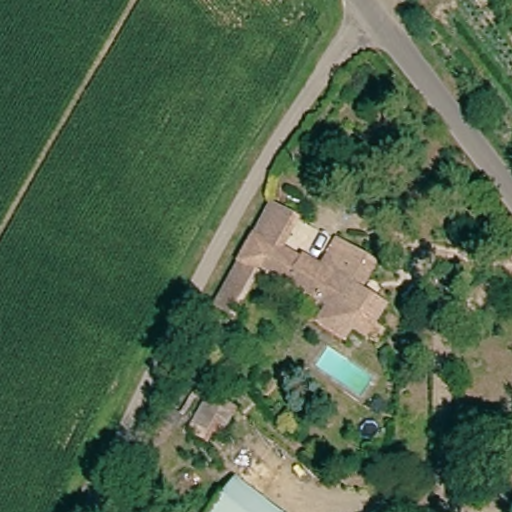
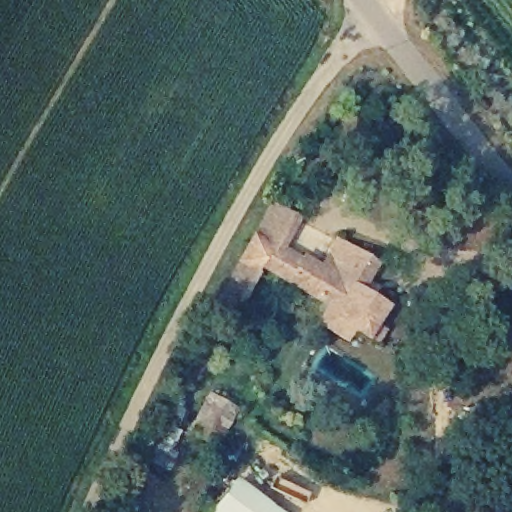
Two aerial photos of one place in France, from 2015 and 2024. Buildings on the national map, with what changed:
unchanged [(367,332),(351,321),(345,331),(322,317),(329,303),(266,267),(261,275),(242,305),(225,292),(243,262),(275,207),(296,220),(284,243),(305,256),(325,267),(341,237),(377,260),(365,288),(383,300),(375,315),(389,323),(379,339),(367,332)]
unchanged [(194,433),(215,394),(244,411),(221,445),(194,433)]
unchanged [(218,512),(234,484),(262,500),(256,512),(218,512)]
unchanged [(256,512),(262,500),(283,512),(256,512)]

